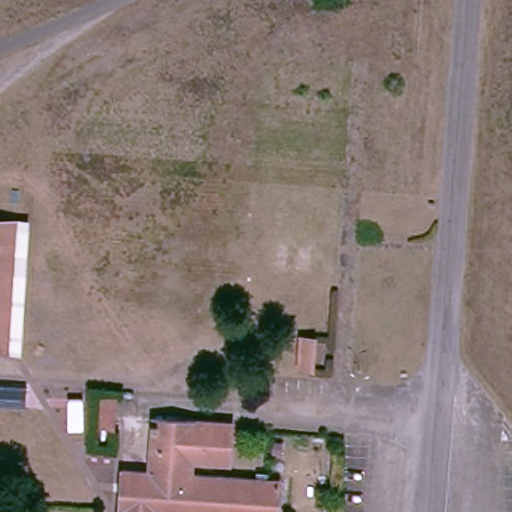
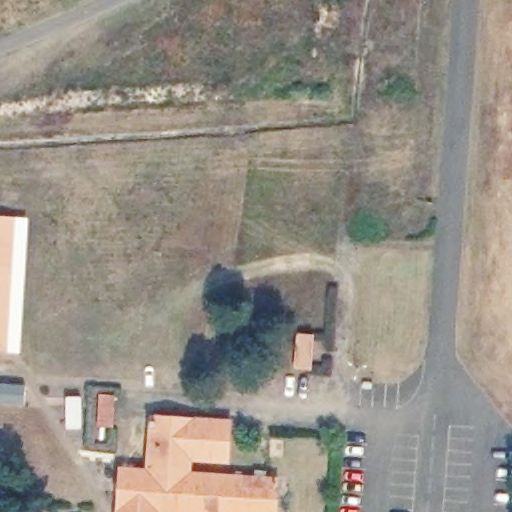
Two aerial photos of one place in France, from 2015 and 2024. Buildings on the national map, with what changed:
unchanged [(17,354),(0,354),(0,216),(27,217),(17,354)]
unchanged [(309,369),(288,368),(291,330),(311,332),(309,369)]
unchanged [(110,426),(92,426),(94,389),(112,391),(110,426)]
unchanged [(227,463),(191,463),(189,471),(278,476),(277,512),(111,512),(111,467),(143,471),(148,415),(227,417),(227,463)]

